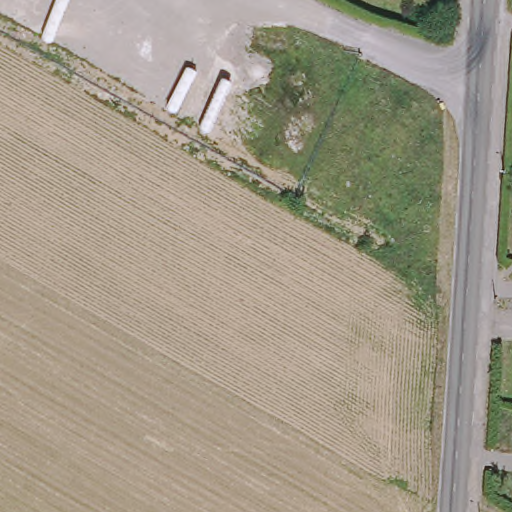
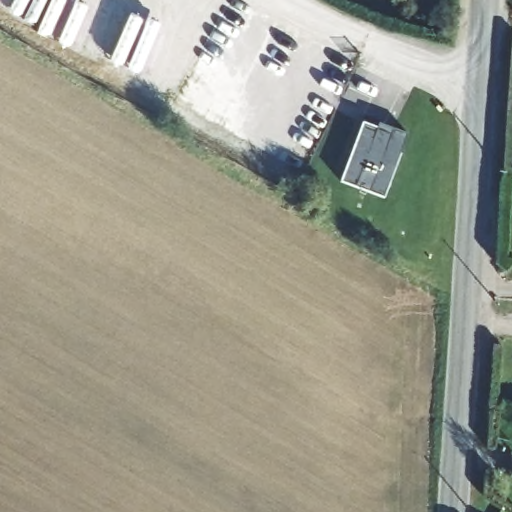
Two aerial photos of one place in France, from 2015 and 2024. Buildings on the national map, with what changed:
new [(385,198),(340,182),(363,119),(408,135),(385,198)]

